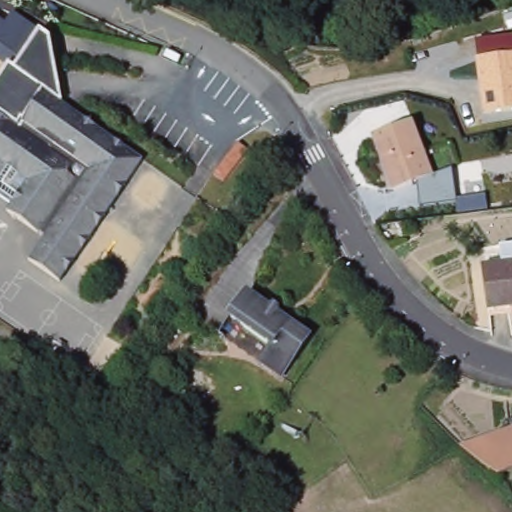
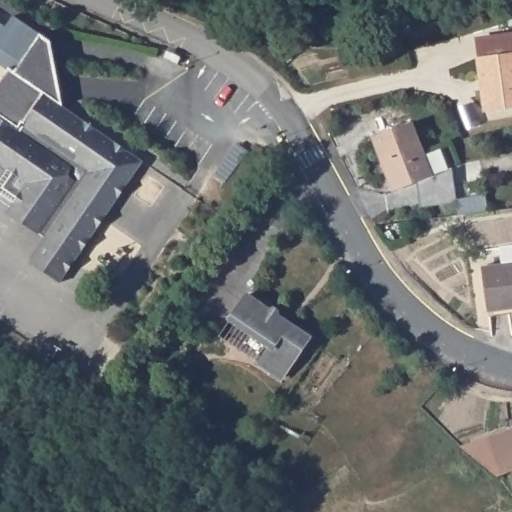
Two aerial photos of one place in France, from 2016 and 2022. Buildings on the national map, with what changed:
unchanged [(13,17),(40,35),(17,69),(15,73),(9,70),(0,64),(0,23),(6,27),(13,17)]
unchanged [(476,57),(475,37),(512,29),(512,108),(484,111),(476,57)]
unchanged [(15,73),(17,69),(40,35),(40,36),(51,42),(55,61),(64,107),(142,160),(61,281),(31,261),(45,238),(10,214),(29,184),(10,170),(0,164),(0,83),(9,70),(15,73)]
unchanged [(418,121),(438,174),(398,189),(378,135),(418,121)]
unchanged [(236,144),(247,151),(225,184),(214,176),(236,144)]
unchanged [(0,184),(0,164),(10,170),(0,184)]
unchanged [(438,174),(455,168),(457,200),(456,200),(420,205),(418,182),(438,174)]
unchanged [(512,263),(512,308),(490,311),(484,266),(512,263)]
unchanged [(252,288),(273,302),(284,310),(314,330),(297,355),(286,372),(265,357),(224,330),(252,288)]
unchanged [(512,429),(512,478),(503,481),(462,441),(512,429)]

